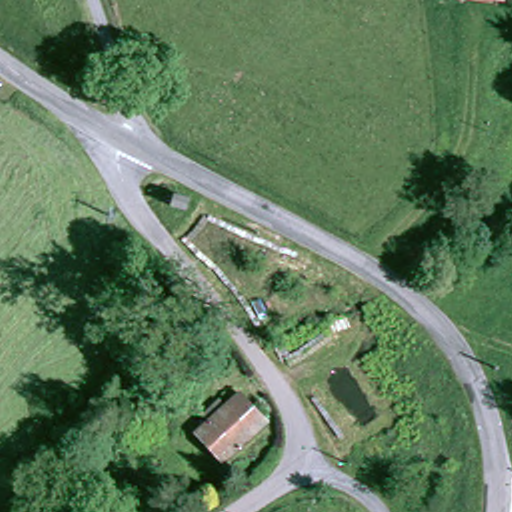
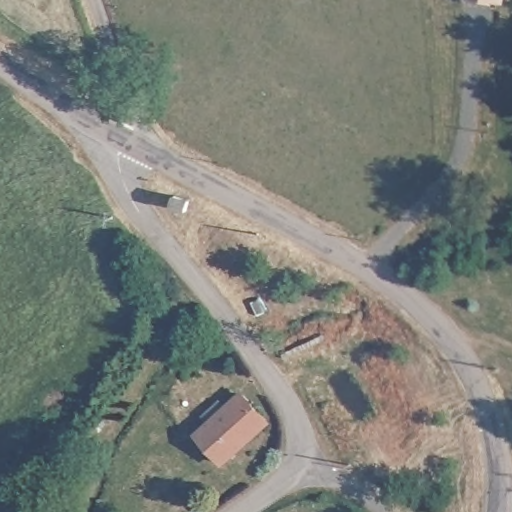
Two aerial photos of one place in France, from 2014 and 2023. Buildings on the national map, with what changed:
unchanged [(211,430),(222,420),(216,413),(231,398),(238,405),(255,390),(281,418),(238,460),(211,430)]

